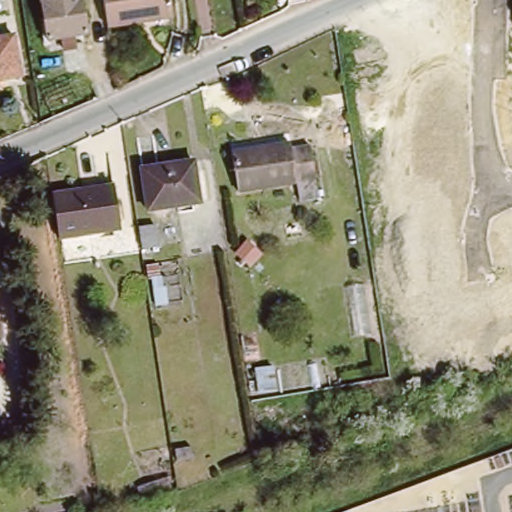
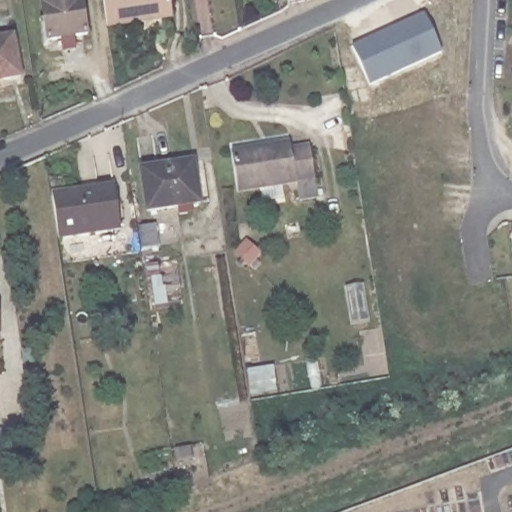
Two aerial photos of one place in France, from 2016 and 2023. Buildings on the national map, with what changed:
unchanged [(46,40),(40,0),(84,0),(89,34),(46,40)]
unchanged [(143,22),(109,27),(105,0),(170,0),(172,13),(173,19),(144,23),(143,22)]
new [(422,15),(439,53),(367,86),(350,47),(422,15)]
unchanged [(7,36),(15,76),(0,79),(0,37),(7,36)]
unchanged [(233,191),(227,153),(283,144),(285,149),(304,145),(310,179),(233,191)]
unchanged [(144,216),(137,175),(188,166),(190,180),(195,208),(144,216)]
unchanged [(51,197),(91,191),(113,188),(120,230),(97,233),(57,239),(51,197)]
unchanged [(143,248),(140,228),(155,225),(159,245),(143,248)]
new [(512,248),(510,237),(512,237),(512,248)]
unchanged [(152,304),(150,283),(163,282),(165,302),(152,304)]
unchanged [(192,457),(176,460),(175,449),(190,446),(192,457)]

